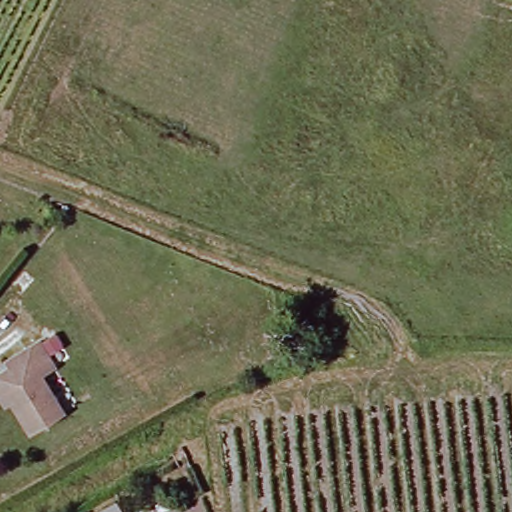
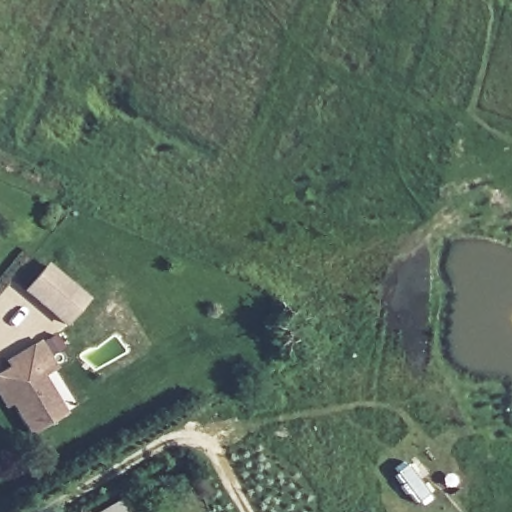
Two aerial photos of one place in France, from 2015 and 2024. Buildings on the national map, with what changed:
new [(47,263),(90,299),(67,326),(25,291),(47,263)]
unchanged [(0,397),(0,374),(11,368),(7,361),(26,351),(41,342),(55,369),(42,377),(63,414),(30,434),(12,403),(6,407),(0,397)]
unchanged [(123,504),(127,512),(107,512),(123,504)]

